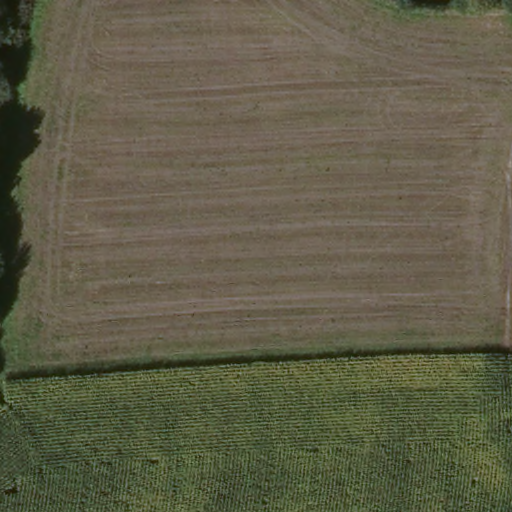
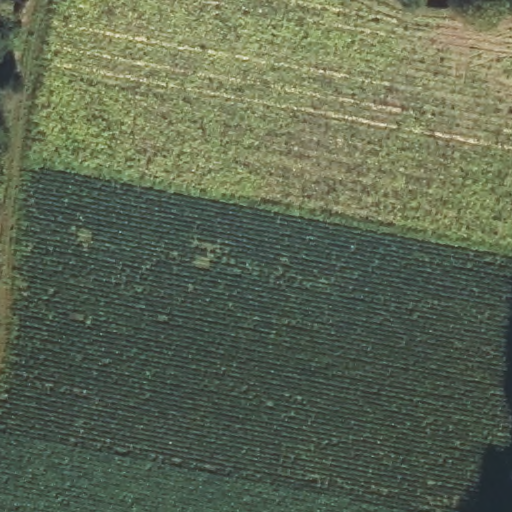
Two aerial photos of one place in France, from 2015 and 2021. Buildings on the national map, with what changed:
[]

